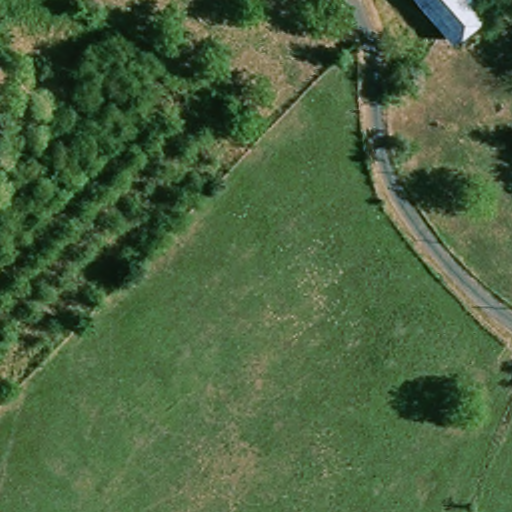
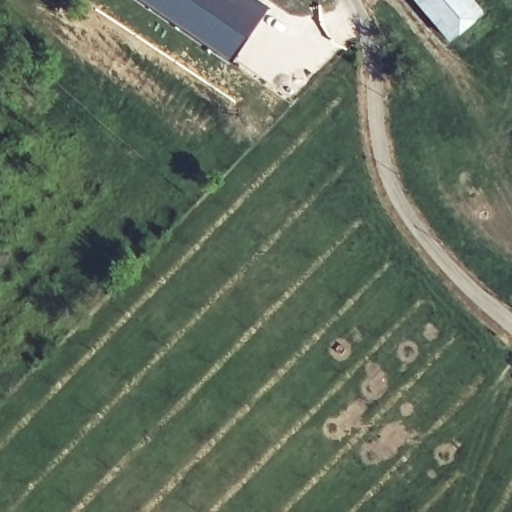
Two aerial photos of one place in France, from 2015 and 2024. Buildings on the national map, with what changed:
new [(258,0),(270,9),(232,62),(139,0),(233,0),(234,0),(258,0)]
unchanged [(410,0),(470,0),(482,14),(447,43),(410,0)]

